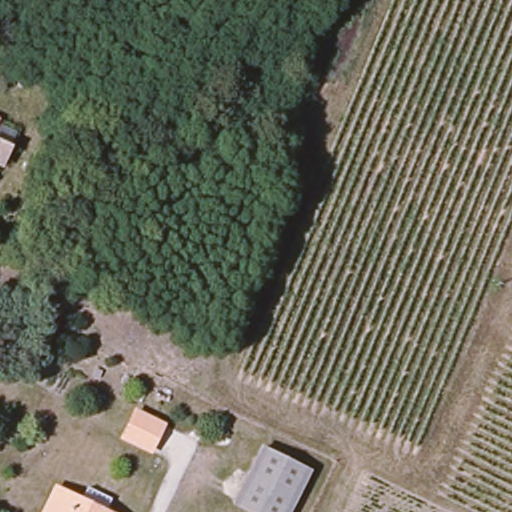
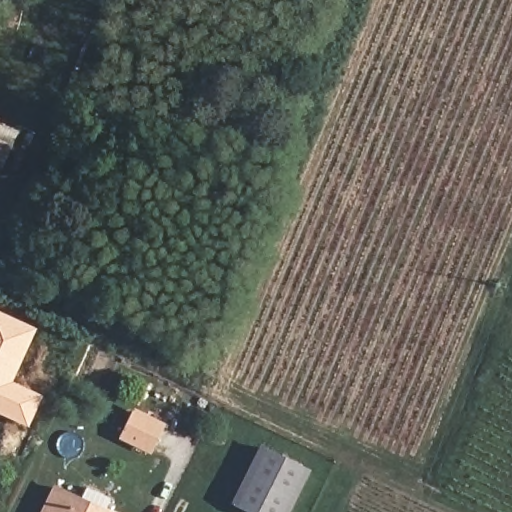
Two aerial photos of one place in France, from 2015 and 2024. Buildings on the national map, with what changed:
unchanged [(0,174),(0,149),(10,154),(0,174)]
new [(13,382),(44,396),(29,427),(0,414),(0,312),(38,329),(13,382)]
unchanged [(121,440),(134,414),(161,429),(149,454),(121,440)]
unchanged [(233,509),(261,456),(305,479),(289,512),(239,512),(233,509)]
unchanged [(55,494),(92,512),(45,512),(55,494)]

